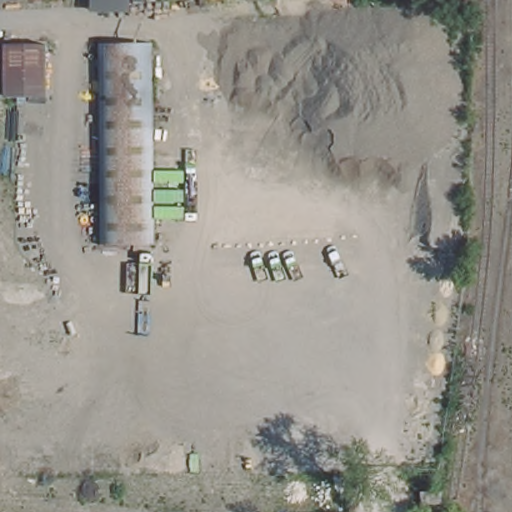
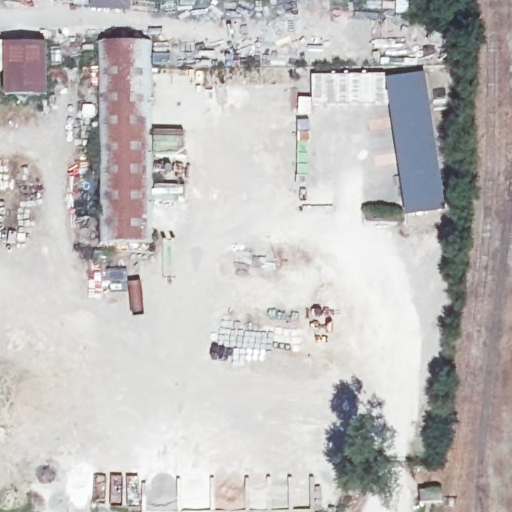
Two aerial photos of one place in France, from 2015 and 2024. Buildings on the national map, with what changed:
new [(129,15),(90,6),(92,0),(132,0),(129,15)]
unchanged [(100,44),(153,44),(154,107),(127,107),(100,107),(100,44)]
unchanged [(7,97),(7,45),(49,45),(50,97),(7,97)]
new [(425,71),(447,210),(404,215),(385,76),(425,71)]
unchanged [(100,245),(100,107),(127,107),(154,107),(157,243),(100,245)]

